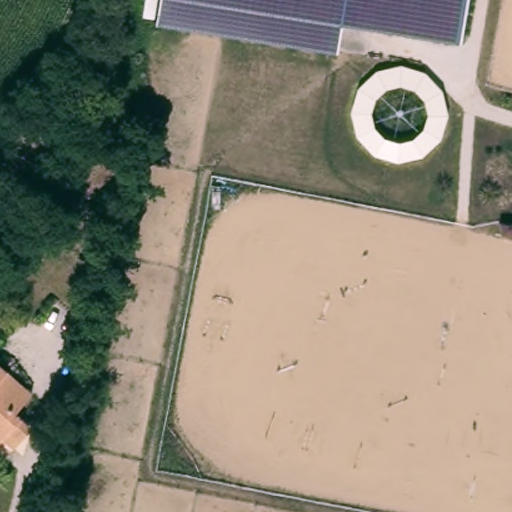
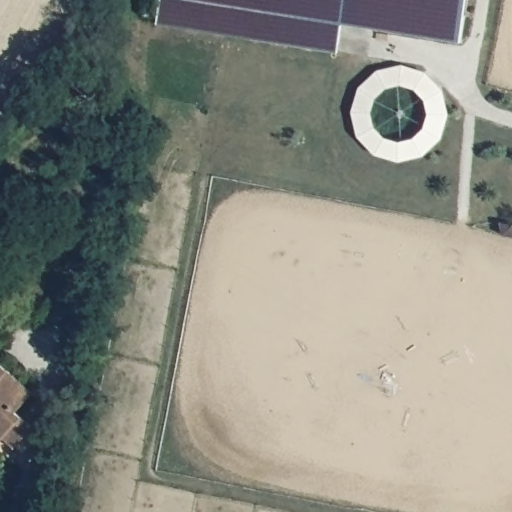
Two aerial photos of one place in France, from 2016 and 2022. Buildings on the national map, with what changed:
unchanged [(461,37),(341,20),(336,51),(155,22),(158,0),(467,0),(461,37)]
unchanged [(65,122),(47,116),(56,91),(74,97),(65,122)]
unchanged [(17,411),(30,423),(21,433),(24,437),(15,447),(3,437),(0,441),(0,361),(34,392),(17,411)]

